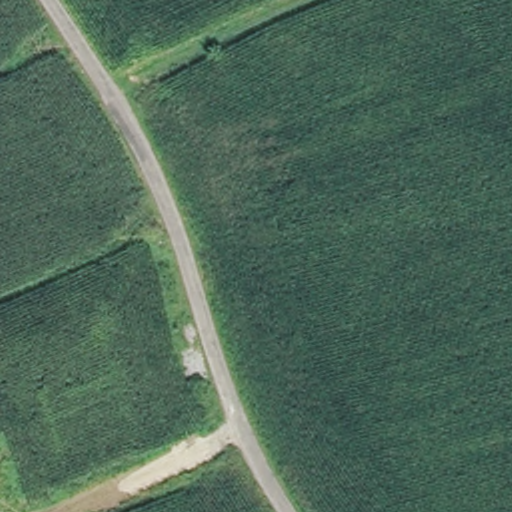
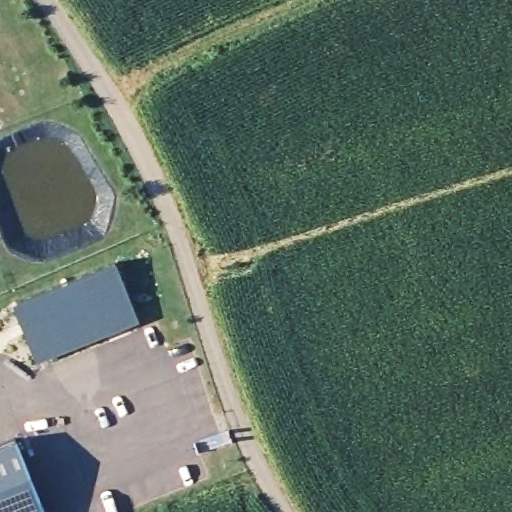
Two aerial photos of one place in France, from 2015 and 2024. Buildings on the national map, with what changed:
new [(40,357),(39,351),(17,298),(115,260),(136,312),(139,318),(40,357)]
new [(44,512),(0,512),(0,424),(8,421),(44,512)]

